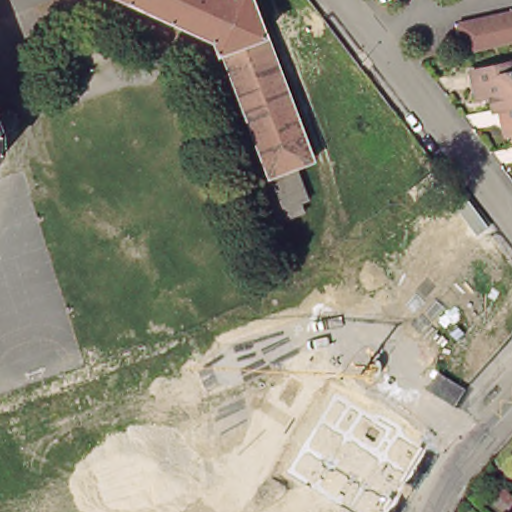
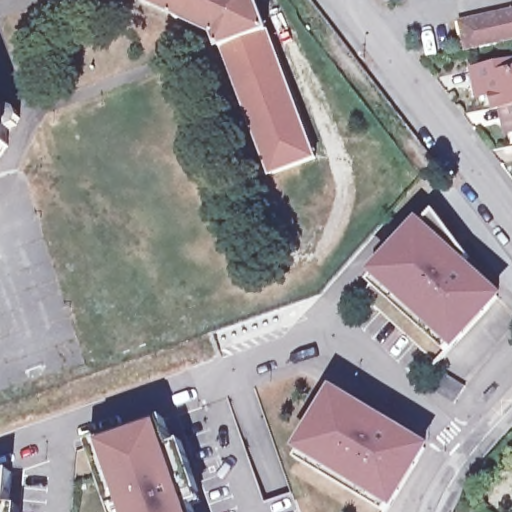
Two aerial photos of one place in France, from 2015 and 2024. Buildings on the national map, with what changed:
unchanged [(305,208),(286,215),(275,187),(218,39),(137,0),(254,0),(313,155),(296,161),(308,194),(300,197),(305,208)]
unchanged [(458,55),(457,49),(451,25),(512,11),(512,43),(458,55)]
unchanged [(511,131),(509,120),(505,105),(500,106),(497,91),(482,95),(479,85),(475,69),(509,61),(512,60),(512,131),(511,131)]
unchanged [(9,106),(17,109),(20,117),(16,127),(7,134),(7,147),(0,158),(0,108),(0,110),(9,106)]
new [(370,282),(375,277),(371,274),(420,219),(425,224),(434,213),(470,260),(466,262),(505,299),(456,353),(450,348),(447,352),(370,282)]
unchanged [(454,400),(437,390),(429,383),(439,368),(448,374),(464,385),(454,400)]
new [(296,451),(335,388),(432,447),(394,511),(387,507),(385,512),(382,512),(297,460),(300,453),(296,451)]
new [(163,421),(172,449),(181,445),(200,501),(189,505),(192,512),(113,512),(90,445),(163,421)]
new [(18,512),(0,512),(0,476),(10,472),(8,507),(19,508),(18,512)]
unchanged [(500,483),(512,495),(512,502),(505,510),(489,495),(500,483)]

